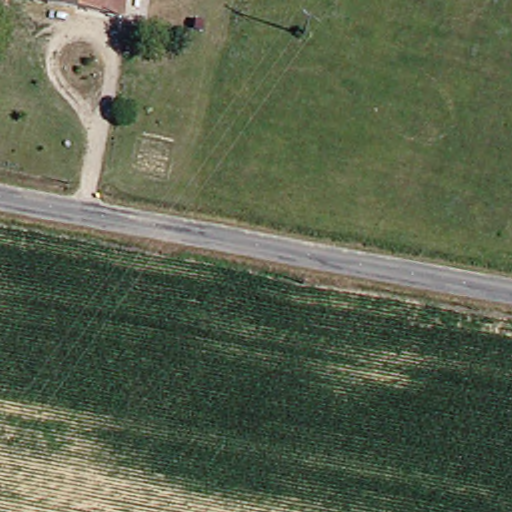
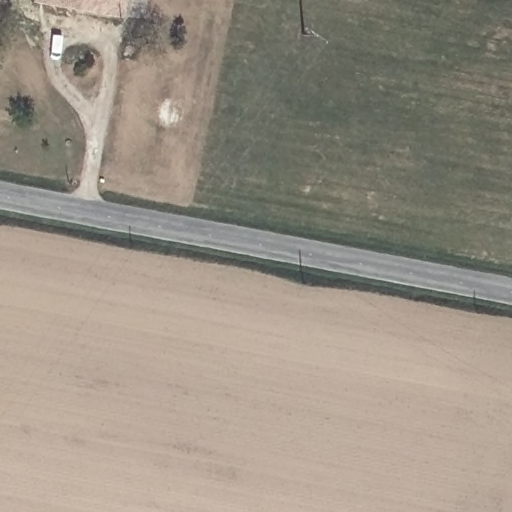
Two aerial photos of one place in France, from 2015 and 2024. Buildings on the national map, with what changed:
unchanged [(0,0),(5,0),(0,16),(0,0)]
unchanged [(39,0),(129,0),(128,11),(39,6),(39,0)]

